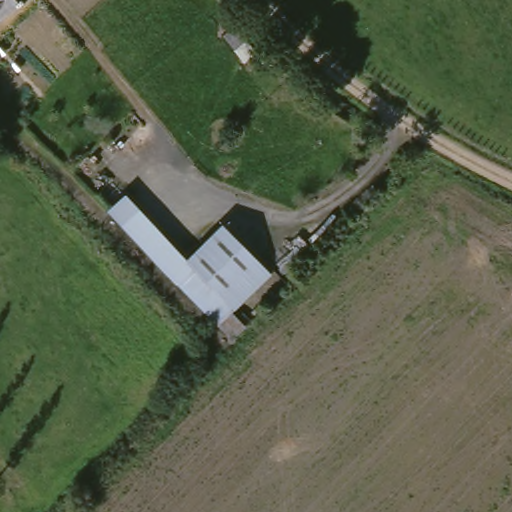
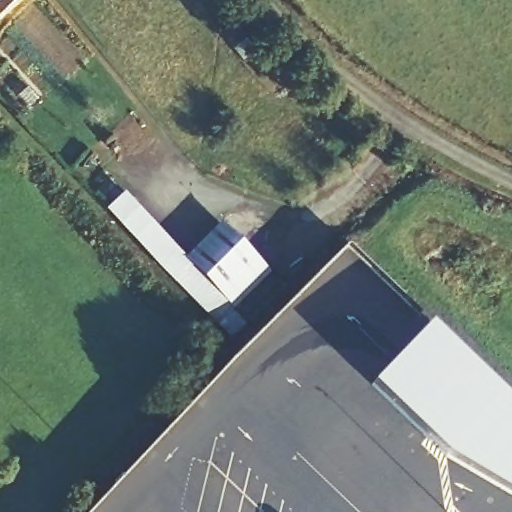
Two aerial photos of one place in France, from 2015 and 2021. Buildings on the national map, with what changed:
unchanged [(0,4),(0,0),(29,0),(11,16),(0,4)]
unchanged [(192,255),(221,227),(277,275),(220,324),(109,209),(128,193),(192,255)]
new [(512,393),(512,487),(450,450),(376,379),(435,318),(512,393)]

